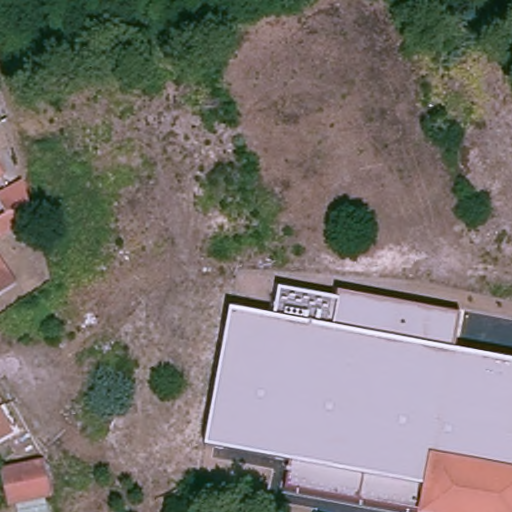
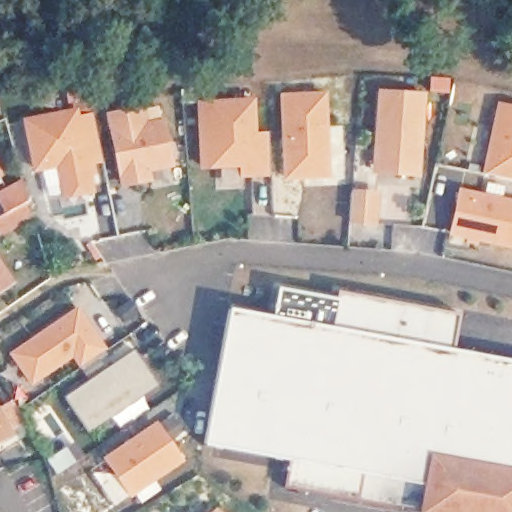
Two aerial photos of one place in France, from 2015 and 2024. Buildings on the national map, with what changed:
new [(429,92),(421,178),(372,174),(378,90),(429,92)]
new [(329,92),(332,178),(285,182),(281,93),(329,92)]
new [(256,98),(258,133),(270,132),(272,176),(240,179),(239,167),(201,169),(197,101),(256,98)]
new [(512,180),(481,173),(496,102),(512,105),(512,180)]
new [(143,105),(147,121),(164,118),(174,168),(150,171),(152,183),(121,189),(104,113),(143,105)]
new [(76,109),(77,117),(94,113),(103,158),(87,161),(92,189),(66,194),(59,163),(36,167),(26,119),(76,109)]
unchanged [(2,167),(0,168),(0,162),(2,167)]
new [(512,248),(448,235),(459,187),(512,198),(512,248)]
new [(381,190),(379,229),(349,227),(352,189),(381,190)]
unchanged [(34,215),(9,228),(1,215),(30,200),(34,215)]
unchanged [(16,281),(0,291),(0,255),(16,281)]
unchanged [(512,361),(512,512),(418,512),(418,510),(286,487),(291,461),(205,446),(229,309),(274,319),(277,287),(335,299),(336,291),(459,314),(454,351),(512,361)]
new [(108,349),(80,369),(73,360),(31,387),(9,352),(79,305),(108,349)]
new [(158,387),(88,433),(65,396),(133,350),(158,387)]
unchanged [(12,432),(0,439),(0,411),(12,432)]
new [(157,420),(187,461),(131,500),(103,457),(157,420)]
demolished [(5,469),(43,461),(51,494),(12,501),(5,469)]
new [(220,512),(210,512),(215,508),(220,512)]

